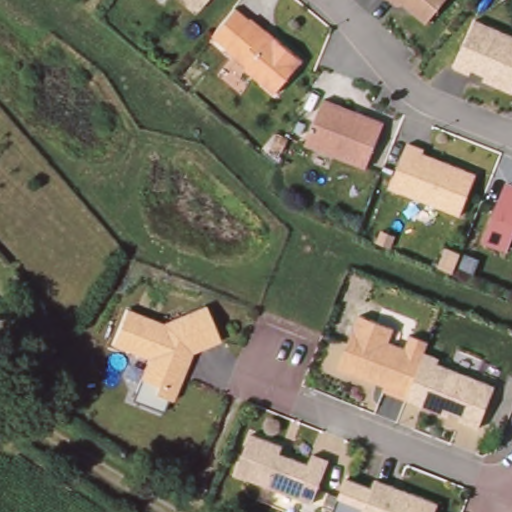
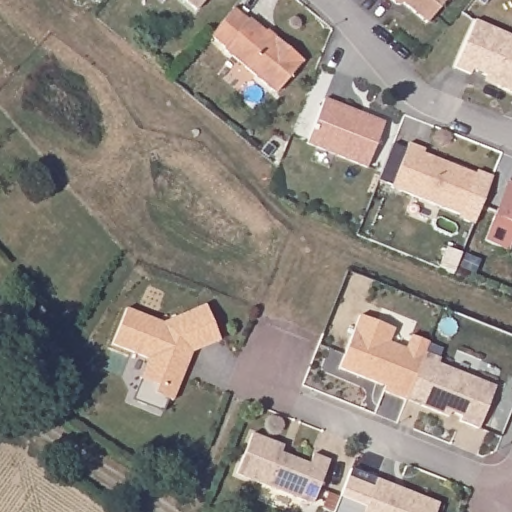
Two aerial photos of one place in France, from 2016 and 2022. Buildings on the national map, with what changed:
unchanged [(185,0),(205,0),(197,10),(185,0)]
unchanged [(392,0),(446,0),(427,22),(403,2),(400,7),(396,3),(392,0)]
unchanged [(248,25),(250,23),(266,37),(267,35),(276,42),(303,65),(276,98),(256,81),(232,61),(224,54),(225,52),(211,41),(234,13),(248,25)]
unchanged [(471,74),(456,67),(476,20),(512,35),(512,91),(498,86),(486,80),(487,76),(473,69),(471,74)]
unchanged [(325,99),(385,122),(367,167),(307,142),(325,99)]
unchanged [(290,138),(284,152),(272,147),(277,134),(290,138)]
unchanged [(423,158),(437,163),(445,167),(477,179),(461,220),(392,192),(409,147),(425,154),(423,158)]
unchanged [(485,241),(497,209),(507,184),(512,186),(512,235),(507,250),(485,241)]
unchanged [(447,247),(462,253),(454,272),(440,267),(447,247)]
unchanged [(173,401),(156,393),(159,386),(141,378),(149,358),(132,352),(112,344),(126,309),(162,323),(205,305),(220,340),(192,352),(189,360),(183,376),(173,401)]
unchanged [(340,372),(361,320),(395,333),(389,347),(407,353),(412,340),(430,347),(424,361),(407,405),(384,395),(386,391),(377,387),(340,372)]
unchanged [(442,418),(421,410),(437,368),(496,391),(479,433),(461,426),(462,421),(451,416),(448,421),(442,418)]
unchanged [(313,454),(330,460),(312,503),(237,473),(252,433),(283,446),(281,452),(292,457),(310,464),(313,454)]
unchanged [(395,486),(405,490),(440,503),(436,512),(363,512),(377,478),(395,486)]

